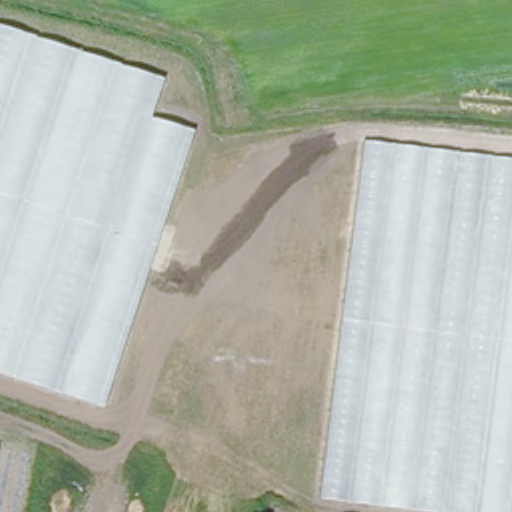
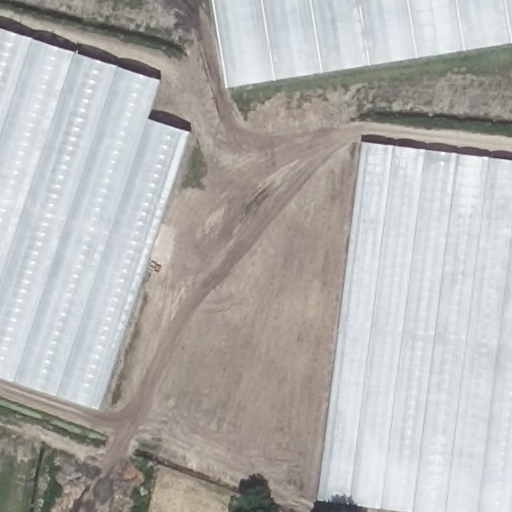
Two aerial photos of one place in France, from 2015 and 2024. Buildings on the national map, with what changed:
new [(215,0),(512,0),(512,44),(229,88),(215,0)]
unchanged [(147,116),(191,128),(100,408),(0,374),(0,26),(160,79),(147,116)]
unchanged [(363,141),(512,159),(512,512),(414,512),(319,501),(363,141)]

